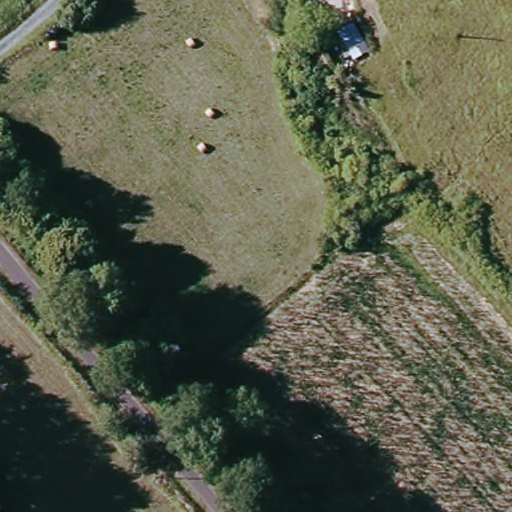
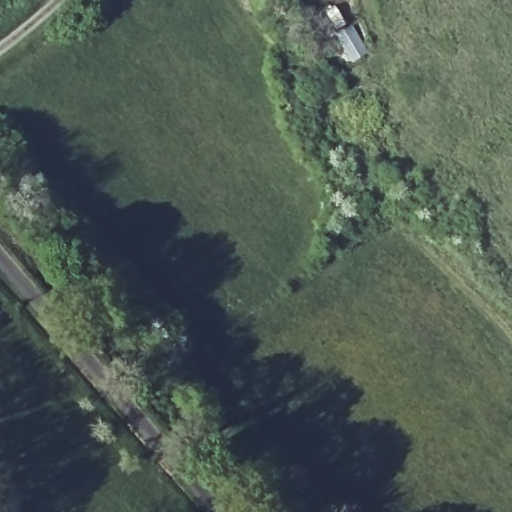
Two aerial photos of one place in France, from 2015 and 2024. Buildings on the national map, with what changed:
unchanged [(357,23),(368,51),(353,59),(339,30),(357,23)]

